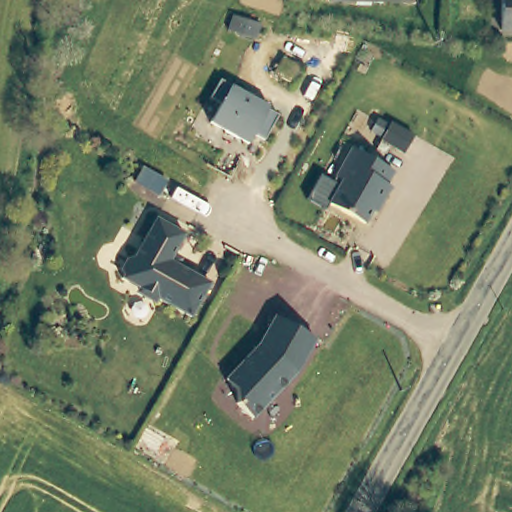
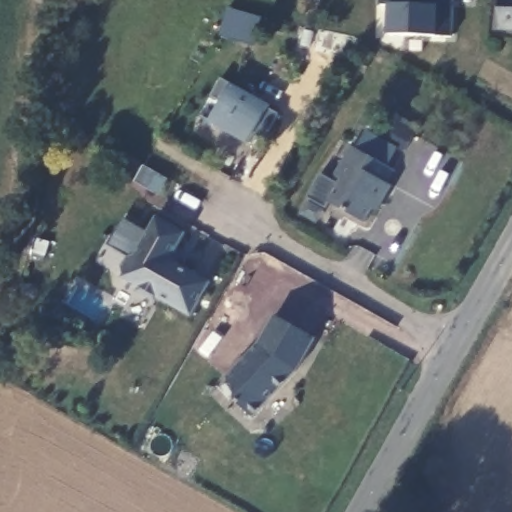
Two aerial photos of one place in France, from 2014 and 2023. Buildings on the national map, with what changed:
new [(390,35),(390,4),(383,3),(383,0),(428,0),(428,6),(452,6),(451,36),(390,35)]
unchanged [(501,0),(512,0),(512,30),(500,30),(501,0)]
unchanged [(257,148),(219,126),(230,107),(219,101),(229,83),(278,110),(277,113),(288,119),(274,144),(263,138),(257,148)]
unchanged [(394,170),(387,183),(391,185),(382,201),(378,199),(364,223),(329,203),(342,179),(335,175),(352,146),(394,170)]
unchanged [(174,255),(182,259),(179,265),(211,283),(192,317),(158,299),(152,301),(142,295),(140,288),(123,279),(124,277),(122,270),(129,259),(135,257),(157,218),(185,234),(174,255)]
unchanged [(277,316),(318,337),(299,371),(256,418),(240,403),(240,389),(229,380),(262,345),(277,316)]

